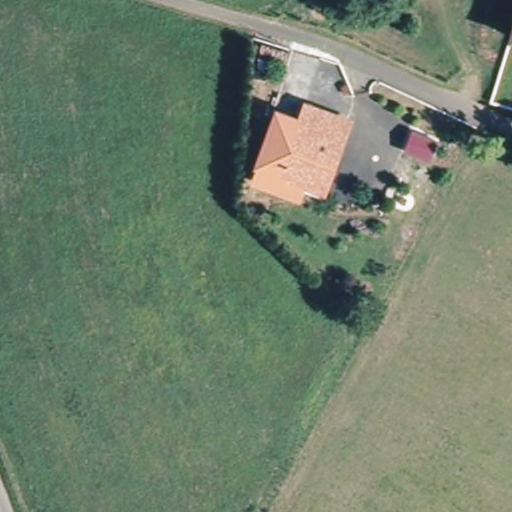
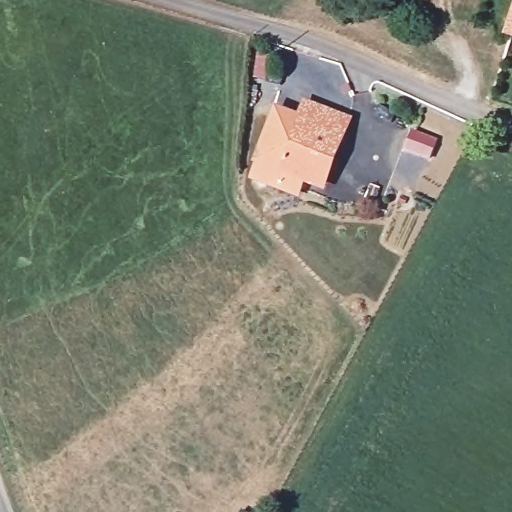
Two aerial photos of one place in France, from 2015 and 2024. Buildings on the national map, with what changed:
unchanged [(512,37),(512,39),(511,39),(512,37)]
unchanged [(302,118),(307,104),(353,122),(340,156),(334,154),(326,172),(333,175),(328,190),(306,182),(282,172),(302,118)]
unchanged [(276,107),(302,118),(282,172),(306,182),(300,200),(249,180),(276,107)]

